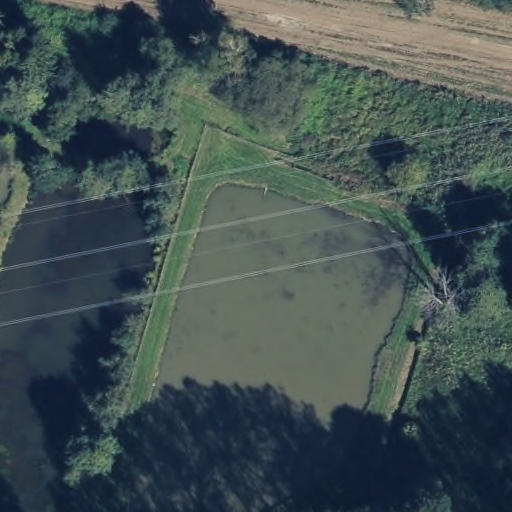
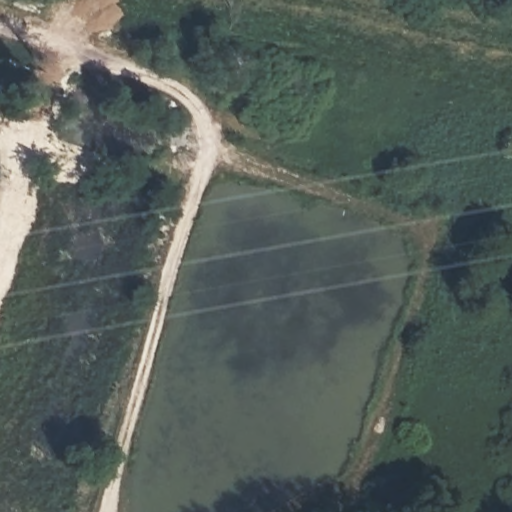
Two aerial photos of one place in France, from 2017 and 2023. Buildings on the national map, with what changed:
[]

